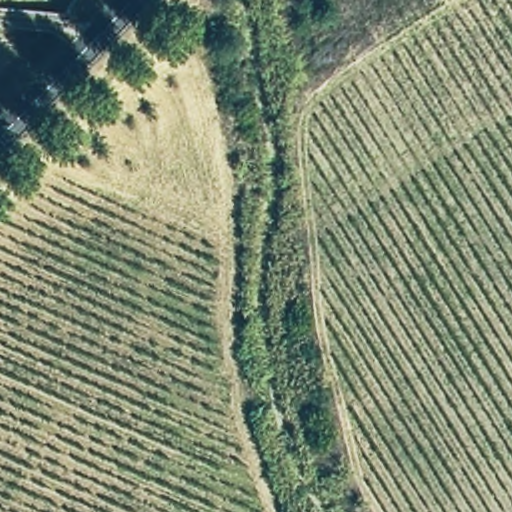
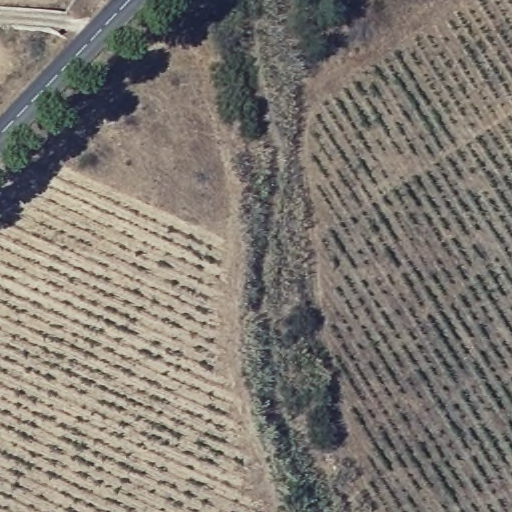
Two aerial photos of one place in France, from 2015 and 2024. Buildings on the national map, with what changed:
[]

